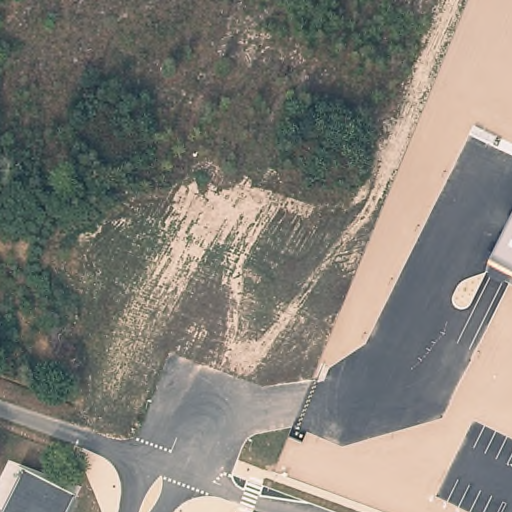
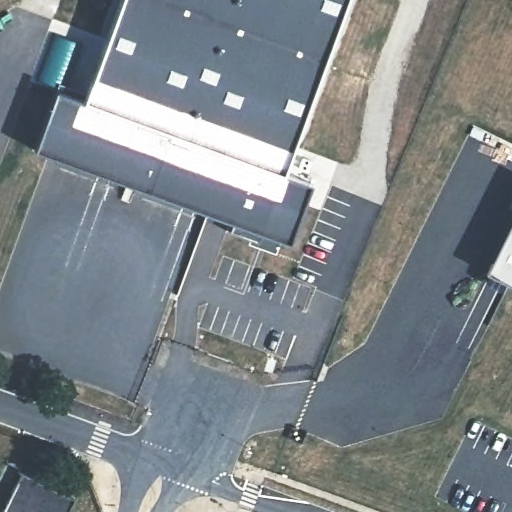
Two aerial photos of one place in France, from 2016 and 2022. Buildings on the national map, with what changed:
new [(311,182),(290,242),(280,239),(275,252),(247,244),(249,237),(229,231),(233,222),(32,150),(55,90),(83,101),(120,0),(345,0),(284,172),(311,182)]
unchanged [(512,215),(512,284),(485,271),(512,215)]
unchanged [(24,473),(75,499),(69,512),(4,512),(24,473)]

